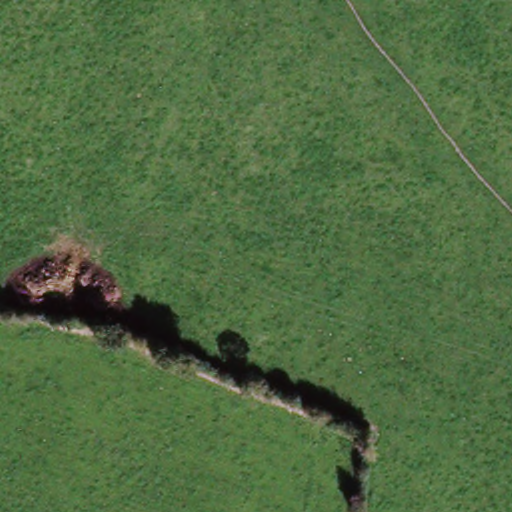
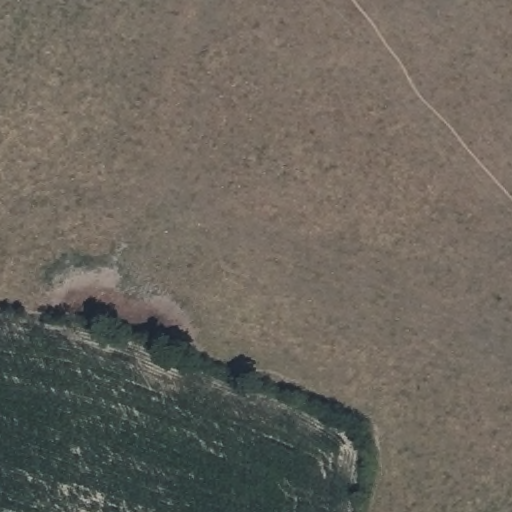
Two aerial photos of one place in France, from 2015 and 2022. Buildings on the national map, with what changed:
[]

